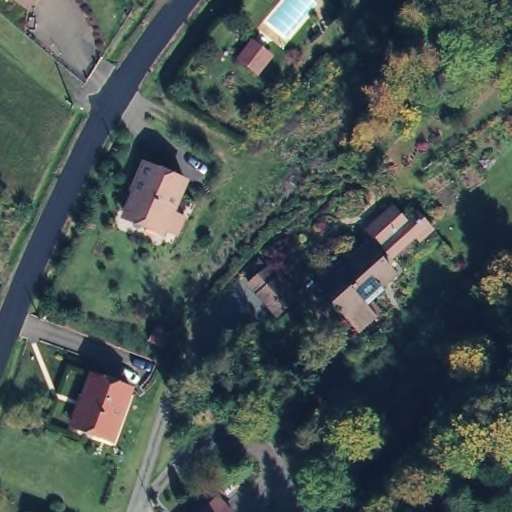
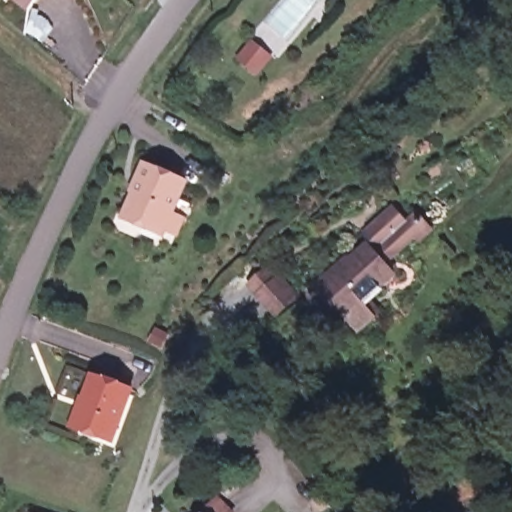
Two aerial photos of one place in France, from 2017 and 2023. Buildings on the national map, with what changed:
unchanged [(8,0),(38,0),(27,15),(8,0)]
unchanged [(247,42),(265,54),(256,71),(235,58),(247,42)]
unchanged [(170,246),(158,241),(120,225),(134,195),(131,194),(139,178),(179,194),(165,226),(176,231),(170,246)]
unchanged [(353,317),(322,288),(365,246),(358,237),(391,206),(405,220),(372,254),(393,276),(353,317)]
unchanged [(303,310),(288,325),(260,294),(273,279),(303,310)]
unchanged [(115,440),(77,427),(98,376),(134,389),(115,440)]

